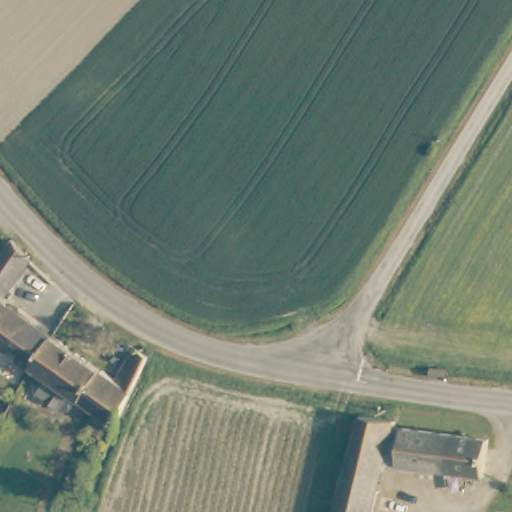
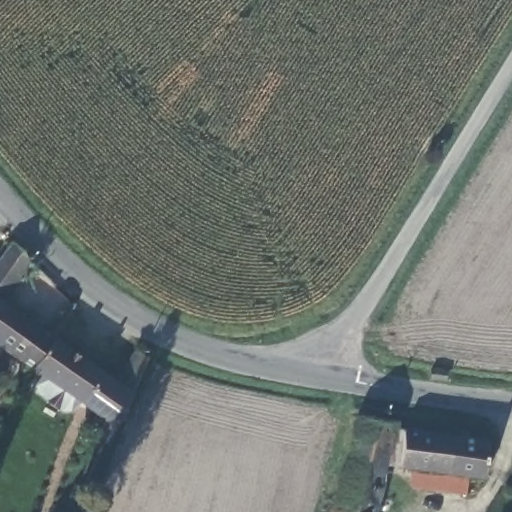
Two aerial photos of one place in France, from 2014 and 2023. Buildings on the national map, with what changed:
unchanged [(29,385),(28,382),(32,373),(7,356),(0,366),(0,267),(10,254),(16,246),(36,267),(10,307),(59,342),(118,384),(134,350),(152,364),(122,424),(110,447),(89,430),(95,416),(74,402),(64,419),(33,398),(29,385)]
unchanged [(398,426),(397,432),(489,444),(485,482),(387,468),(376,512),(336,512),(360,415),(398,426)]

